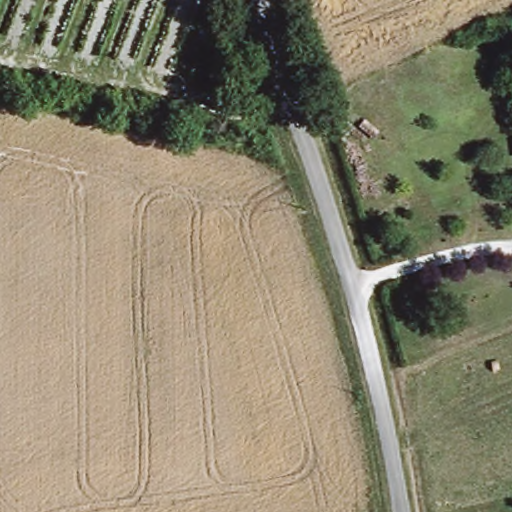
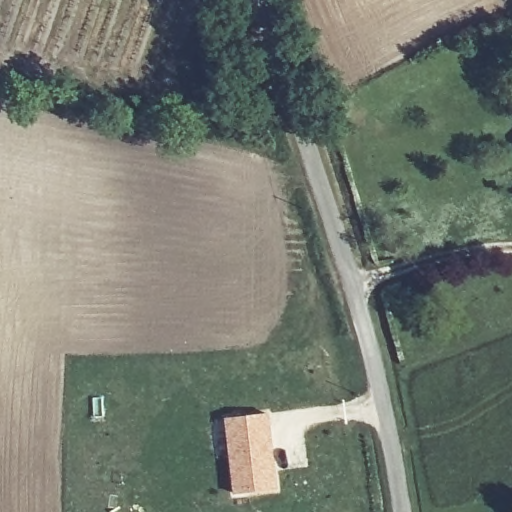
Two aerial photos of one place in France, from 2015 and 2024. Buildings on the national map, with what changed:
new [(231,493),(223,418),(266,414),(274,487),(231,493)]

